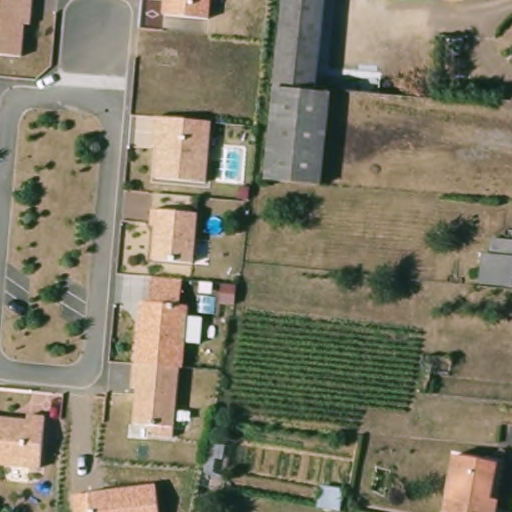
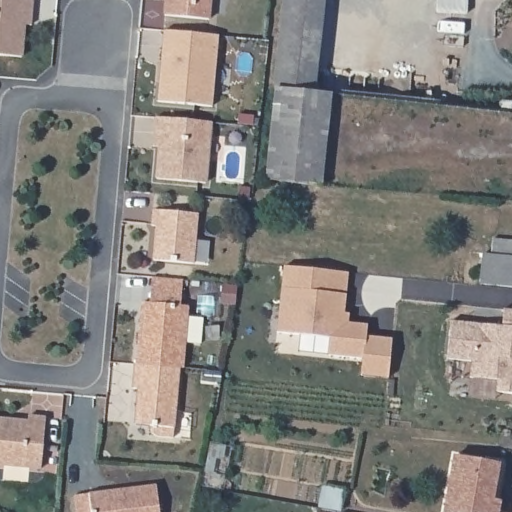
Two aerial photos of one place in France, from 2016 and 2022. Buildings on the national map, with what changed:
unchanged [(25,25),(22,55),(0,53),(0,0),(32,0),(30,25),(25,25)]
unchanged [(162,16),(164,0),(213,0),(211,21),(162,16)]
unchanged [(311,89),(310,93),(284,91),(271,89),(284,0),(338,0),(326,90),(311,89)]
new [(162,31),(219,35),(212,106),(157,101),(162,31)]
unchanged [(310,93),(338,96),(334,127),(280,122),(284,91),(310,93)]
unchanged [(159,145),(153,145),(155,117),(212,121),(209,181),(157,177),(159,145)]
unchanged [(334,127),(326,187),(271,184),(280,122),(334,127)]
unchanged [(156,225),(151,225),(152,207),(198,212),(196,261),(155,258),(156,225)]
unchanged [(512,256),(512,264),(511,287),(476,284),(478,254),(512,256)]
new [(351,320),(370,322),(368,333),(365,355),(330,352),(332,335),(280,330),(286,272),(350,278),(346,311),(351,311),(351,320)]
unchanged [(152,278),(182,281),(181,308),(151,306),(152,278)]
unchanged [(141,305),(187,308),(174,430),(136,426),(139,391),(132,390),(141,305)]
new [(497,381),(470,377),(471,362),(447,360),(452,321),(502,325),(504,311),(512,311),(512,394),(496,393),(497,381)]
new [(365,355),(368,333),(395,336),(391,375),(363,372),(365,355)]
unchanged [(29,415),(47,417),(44,470),(0,466),(0,417),(28,420),(29,415)]
unchanged [(497,458),(491,497),(499,498),(497,512),(445,512),(453,454),(497,458)]
unchanged [(161,512),(75,512),(72,496),(157,483),(161,512)]

